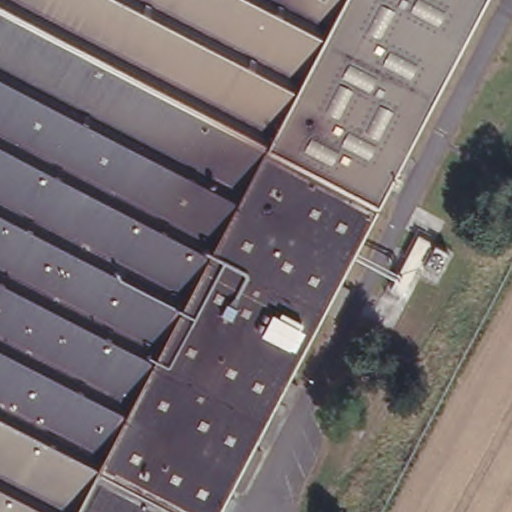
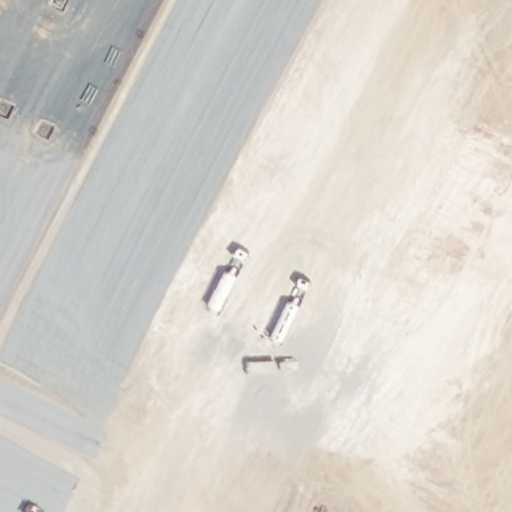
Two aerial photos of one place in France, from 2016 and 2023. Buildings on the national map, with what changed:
new [(0,0),(174,0),(0,324),(0,0)]
demolished [(214,512),(43,512),(0,490),(0,0),(465,0),(361,199),(214,512)]
new [(57,512),(0,512),(0,437),(76,476),(57,512)]
demolished [(0,490),(43,512),(0,512),(0,490)]

